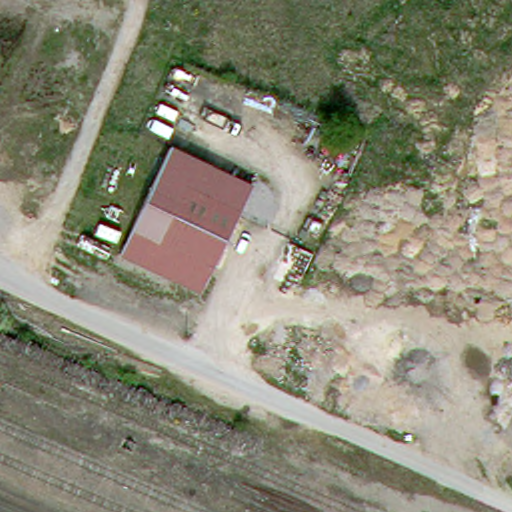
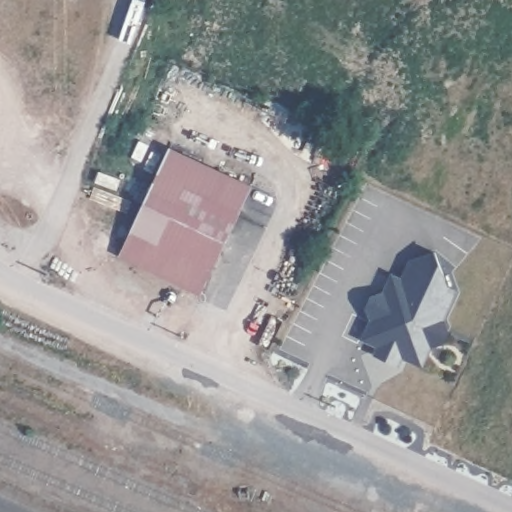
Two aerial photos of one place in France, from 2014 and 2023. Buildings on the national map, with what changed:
unchanged [(249,198),(211,277),(131,239),(166,160),(249,198)]
new [(449,330),(443,343),(432,347),(423,367),(403,358),(399,366),(374,354),(378,345),(361,339),(370,320),(367,307),(373,292),(384,292),(391,272),(404,277),(411,257),(437,252),(450,288),(459,292),(446,321),(449,330)]

